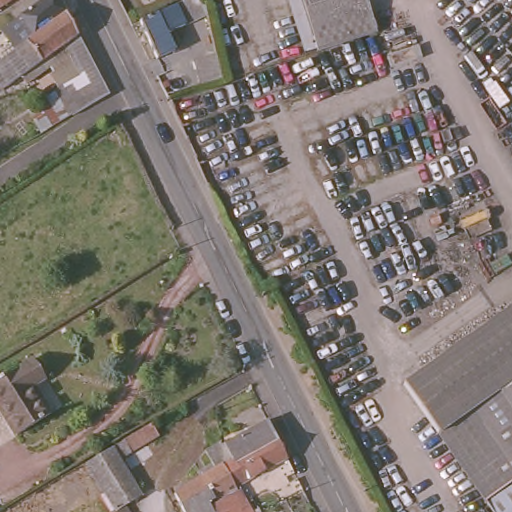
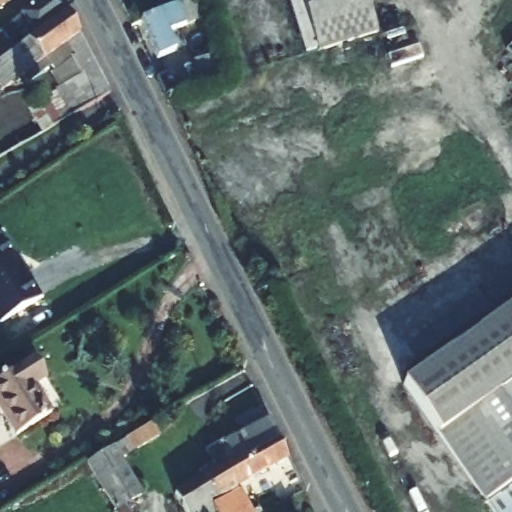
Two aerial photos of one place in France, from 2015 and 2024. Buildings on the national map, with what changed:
unchanged [(13,19),(40,0),(58,0),(65,14),(22,41),(9,22),(13,19)]
unchanged [(179,0),(200,0),(203,11),(178,21),(162,29),(170,48),(153,56),(135,19),(155,10),(171,4),(179,0)]
unchanged [(303,0),(364,0),(367,10),(311,26),(303,0)]
unchanged [(317,48),(311,26),(367,10),(373,33),(317,48)]
unchanged [(82,89),(75,68),(70,56),(63,44),(11,78),(0,84),(0,56),(22,41),(65,14),(77,36),(84,50),(97,75),(106,93),(78,106),(67,113),(60,103),(72,95),(82,89)]
unchanged [(195,60),(217,55),(220,64),(223,79),(200,86),(195,60)]
unchanged [(168,69),(180,93),(167,96),(162,86),(156,74),(168,69)]
new [(25,274),(40,301),(0,324),(0,241),(21,276),(25,274)]
unchanged [(512,316),(512,512),(494,512),(408,390),(512,316)]
unchanged [(43,374),(30,382),(47,411),(15,431),(0,408),(0,376),(32,356),(43,374)]
unchanged [(160,437),(122,459),(144,493),(127,503),(133,512),(119,512),(93,473),(86,462),(110,449),(128,439),(153,425),(160,437)]
unchanged [(230,482),(220,466),(230,461),(221,446),(238,436),(247,451),(265,442),(272,437),(282,458),(275,462),(232,486),(230,482)]
unchanged [(224,512),(182,512),(172,494),(220,466),(230,482),(232,486),(203,502),(206,507),(217,501),(224,512)]

